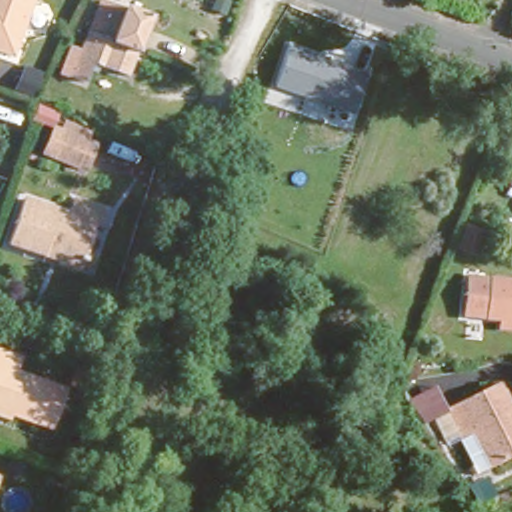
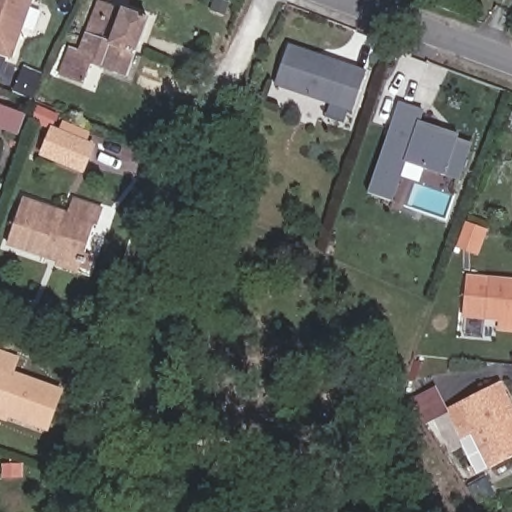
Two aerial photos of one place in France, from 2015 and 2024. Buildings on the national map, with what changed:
unchanged [(0,49),(0,0),(28,0),(10,53),(0,49)]
unchanged [(92,0),(93,0),(144,19),(124,72),(89,59),(82,78),(56,68),(65,45),(71,47),(92,0)]
unchanged [(353,112),(274,86),(288,45),(366,70),(353,112)]
unchanged [(14,90),(20,72),(36,78),(30,96),(14,90)]
new [(397,106),(477,132),(460,182),(445,177),(406,164),(392,201),(368,194),(397,106)]
unchanged [(52,129),(57,130),(59,124),(93,138),(90,147),(94,149),(83,177),(38,158),(49,131),(30,123),(36,110),(57,118),(52,129)]
unchanged [(82,269),(72,265),(49,257),(52,250),(41,246),(38,252),(4,239),(22,192),(67,210),(72,199),(101,210),(95,225),(88,222),(77,250),(86,254),(82,269)]
unchanged [(495,312),(462,310),(466,273),(512,277),(512,325),(494,323),(495,312)]
unchanged [(14,350),(6,370),(56,389),(42,425),(0,408),(0,345),(14,350)]
unchanged [(69,390),(75,371),(84,374),(78,393),(69,390)]
unchanged [(446,406),(459,400),(456,395),(495,378),(505,400),(498,402),(512,434),(512,454),(488,465),(476,470),(459,433),(446,406)]
unchanged [(418,428),(405,400),(433,388),(441,404),(446,419),(418,428)]

